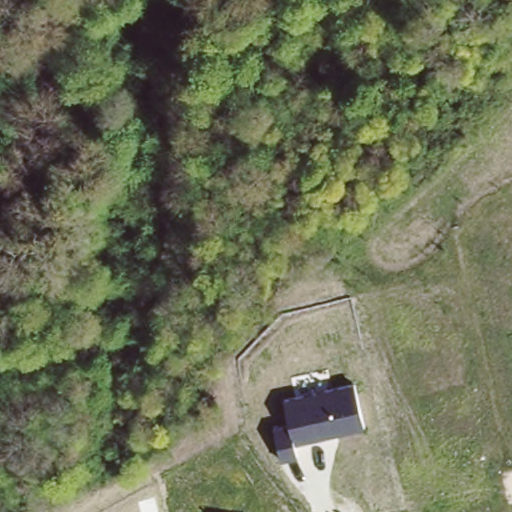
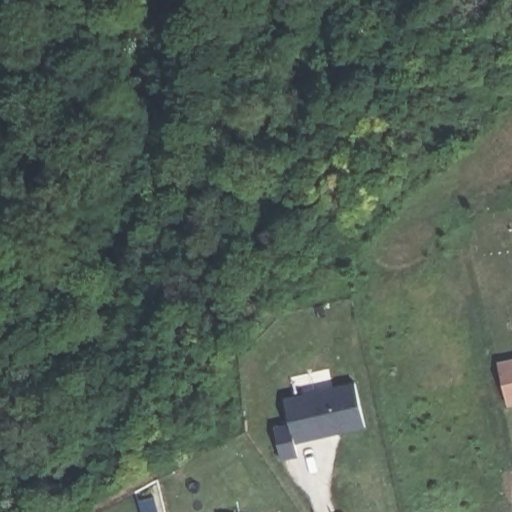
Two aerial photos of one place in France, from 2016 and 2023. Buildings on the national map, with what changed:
new [(512,360),(512,405),(508,405),(498,362),(512,360)]
unchanged [(274,426),(288,423),(283,400),(353,385),(363,427),(295,441),(297,457),(280,460),(274,426)]

